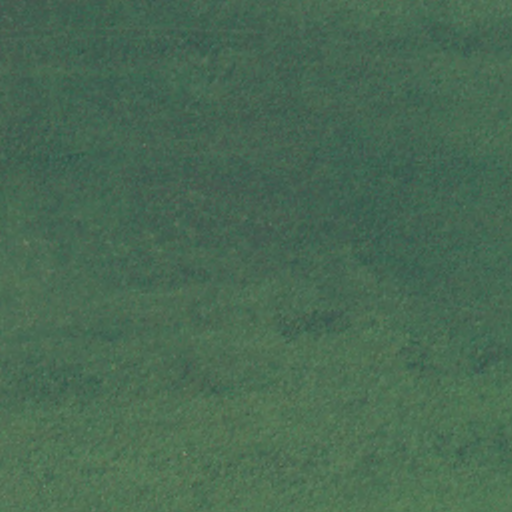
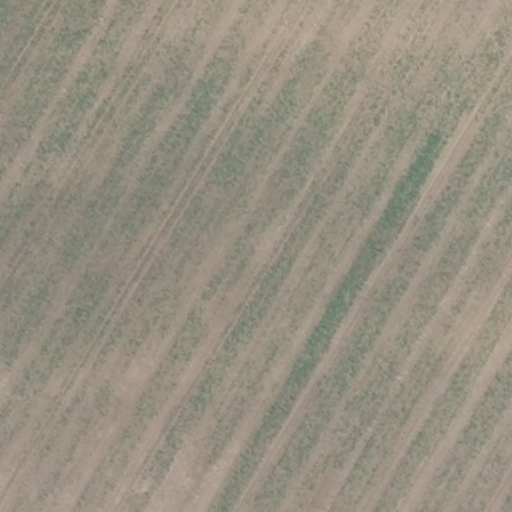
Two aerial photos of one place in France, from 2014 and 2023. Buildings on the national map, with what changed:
[]

